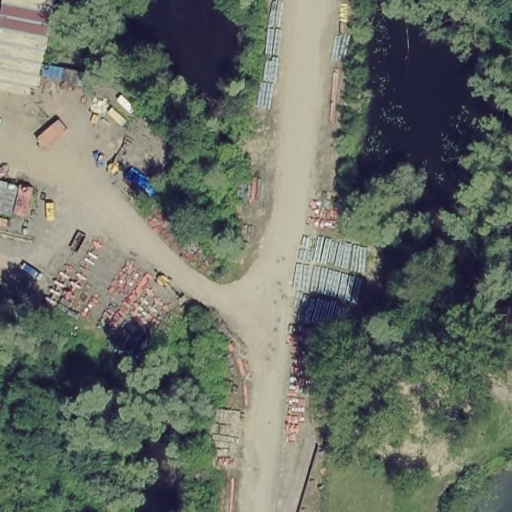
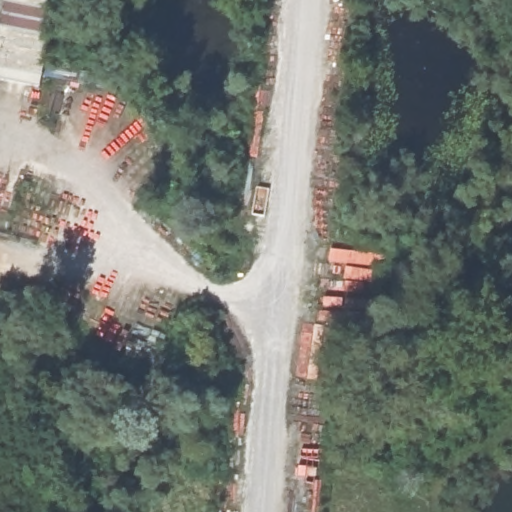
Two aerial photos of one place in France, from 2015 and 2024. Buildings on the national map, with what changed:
unchanged [(0,80),(0,19),(4,0),(58,0),(40,88),(0,80)]

